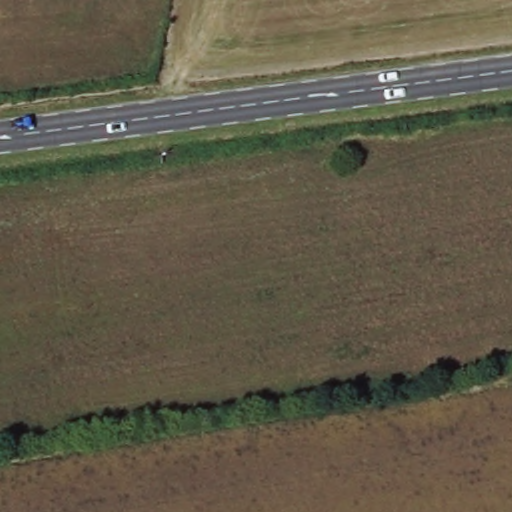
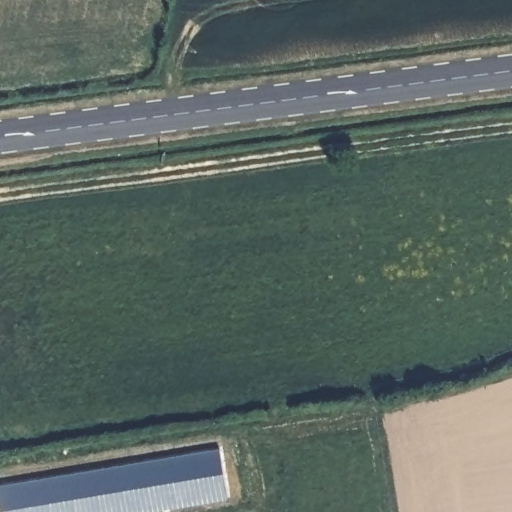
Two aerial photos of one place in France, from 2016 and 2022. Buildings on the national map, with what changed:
new [(147,512),(0,512),(0,509),(0,486),(219,449),(227,499),(147,512)]

